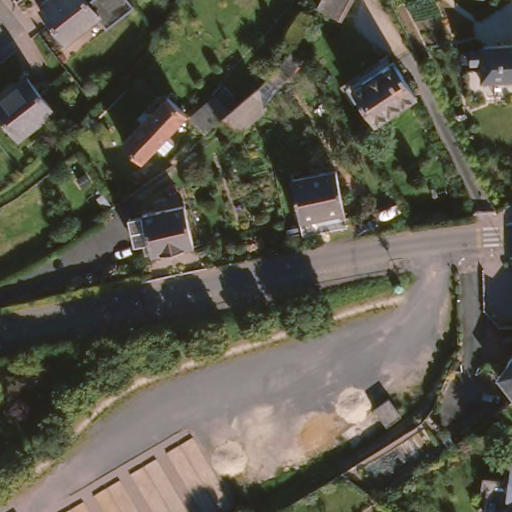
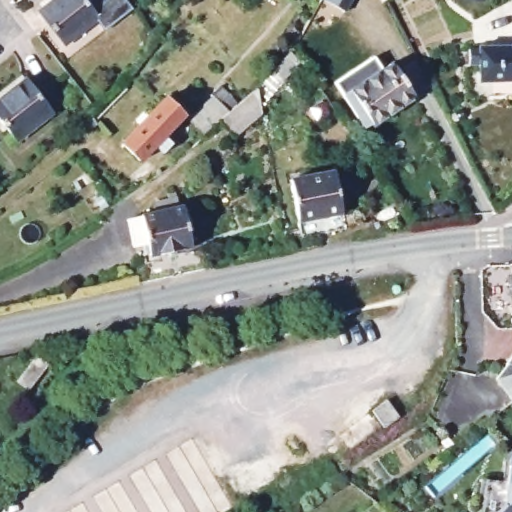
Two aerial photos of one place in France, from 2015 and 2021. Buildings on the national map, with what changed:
unchanged [(122,0),(128,7),(100,30),(92,19),(61,42),(34,7),(42,0),(122,0)]
unchanged [(319,0),(345,0),(355,6),(335,42),(311,29),(320,14),(313,10),(319,0)]
unchanged [(475,84),(473,50),(506,47),(512,44),(512,82),(475,84)]
unchanged [(280,57),(286,49),(297,57),(281,77),(270,69),(280,57)]
unchanged [(390,62),(412,97),(369,125),(347,90),(390,62)]
unchanged [(56,113),(20,138),(0,110),(0,99),(31,77),(56,113)]
unchanged [(240,100),(259,82),(265,108),(239,132),(224,114),(240,100)]
unchanged [(202,101),(215,91),(218,96),(220,97),(221,96),(222,95),(229,89),(238,99),(203,128),(189,112),(202,101)]
unchanged [(122,135),(151,106),(166,92),(184,109),(185,110),(141,152),(122,135)]
unchanged [(331,171),(340,212),(295,222),(288,181),(331,171)]
unchanged [(102,211),(97,204),(92,197),(95,196),(91,191),(96,188),(98,191),(108,206),(102,211)]
unchanged [(142,250),(136,219),(150,216),(150,214),(162,211),(160,202),(177,199),(176,192),(184,190),(185,197),(186,196),(189,205),(192,204),(201,247),(159,257),(159,255),(154,256),(152,247),(142,250)]
unchanged [(492,377),(512,348),(512,402),(492,377)]
unchanged [(25,387),(15,378),(36,353),(47,362),(25,387)]
unchanged [(508,509),(504,506),(505,472),(512,460),(512,512),(506,512),(508,509)]

